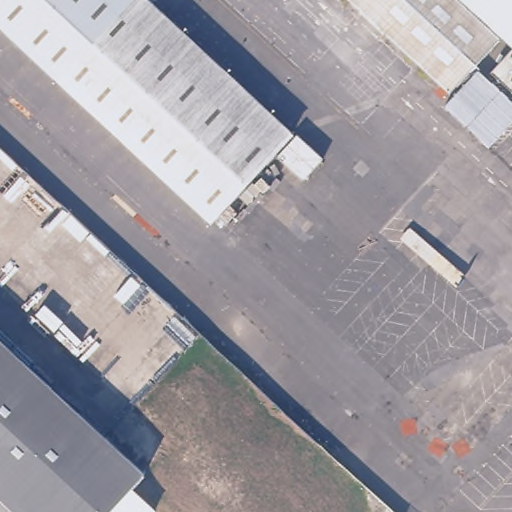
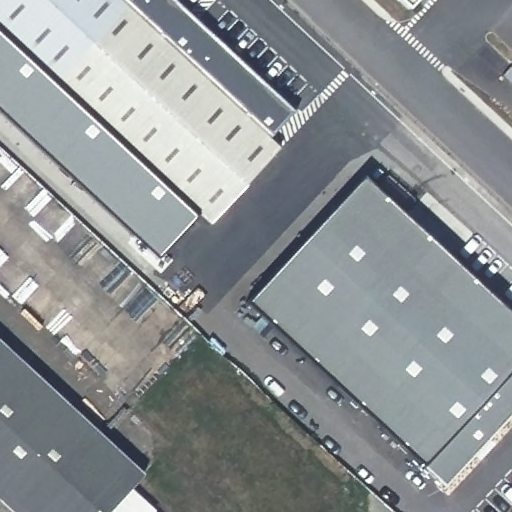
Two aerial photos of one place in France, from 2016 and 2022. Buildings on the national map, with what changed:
unchanged [(213,226),(0,30),(0,0),(136,0),(291,142),(213,226)]
demolished [(419,67),(363,127),(226,0),(346,0),(419,67)]
demolished [(478,75),(462,92),(458,87),(361,0),(512,0),(512,38),(478,75)]
new [(409,7),(401,0),(415,0),(409,7)]
demolished [(462,92),(478,75),(512,104),(512,131),(500,144),(490,149),(444,107),(458,87),(462,92)]
demolished [(500,144),(512,131),(512,154),(500,144)]
new [(363,174),(512,311),(512,414),(445,487),(246,301),(363,174)]
unchanged [(106,512),(12,512),(0,501),(0,345),(141,473),(106,512)]

